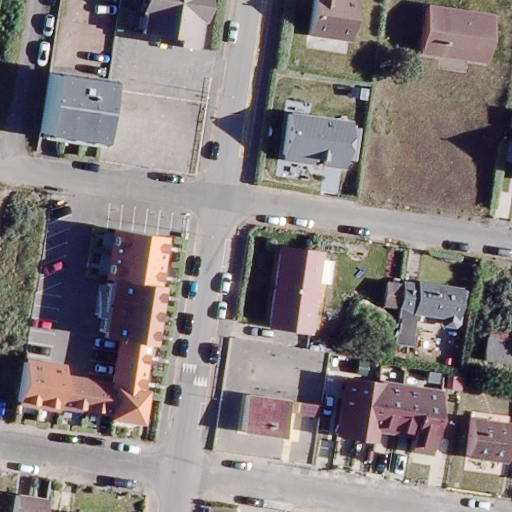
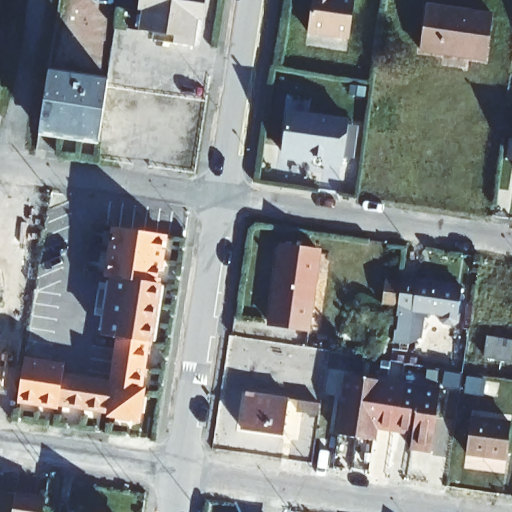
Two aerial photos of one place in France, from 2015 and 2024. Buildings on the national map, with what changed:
unchanged [(158,39),(159,31),(144,30),(149,0),(202,0),(196,37),(195,45),(158,39)]
unchanged [(339,1),(339,0),(357,0),(351,42),(308,37),(313,0),(328,0),(339,1)]
unchanged [(451,10),(450,14),(475,18),(476,15),(497,18),(489,61),(424,51),(431,8),(451,10)]
unchanged [(38,128),(47,69),(106,79),(97,137),(38,128)]
unchanged [(512,111),(512,125),(508,124),(509,110),(512,111)]
unchanged [(354,162),(343,160),(342,166),(322,164),(323,159),(301,155),(294,160),(285,158),(281,152),(280,152),(286,114),(349,123),(348,127),(359,129),(354,162)]
unchanged [(69,365),(67,375),(117,381),(125,335),(110,333),(123,276),(116,275),(125,226),(174,235),(166,283),(167,283),(156,341),(153,341),(144,390),(148,390),(143,416),(115,412),(115,409),(90,405),(63,401),(62,405),(41,402),(23,399),(28,360),(69,365)]
unchanged [(321,254),(311,331),(272,325),(283,247),(321,254)]
unchanged [(417,287),(417,283),(461,290),(458,317),(413,311),(408,346),(393,343),(402,285),(417,287)]
unchanged [(512,330),(512,362),(484,357),(491,325),(512,330)]
unchanged [(353,432),(335,430),(341,388),(344,371),(380,376),(399,378),(418,381),(437,384),(428,445),(409,443),(411,428),(392,425),(373,422),(371,435),(353,432)]
unchanged [(289,399),(285,435),(269,432),(242,428),(248,392),(274,396),(289,399)]
unchanged [(322,403),(320,414),(299,410),(301,400),(322,403)]
unchanged [(511,421),(506,457),(466,452),(473,416),(511,421)]
unchanged [(13,512),(14,505),(44,510),(44,512),(13,512)]
unchanged [(78,512),(78,511),(81,512),(78,512)]

